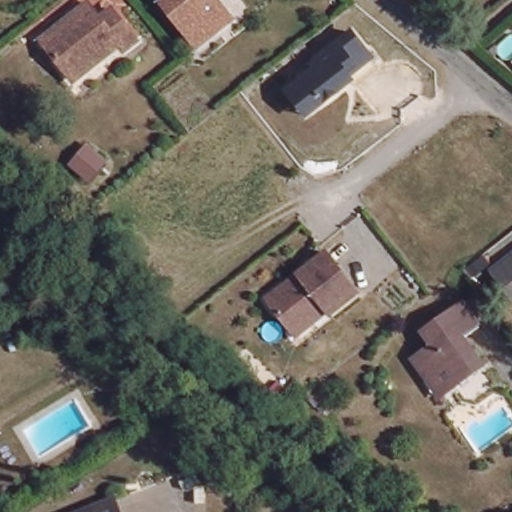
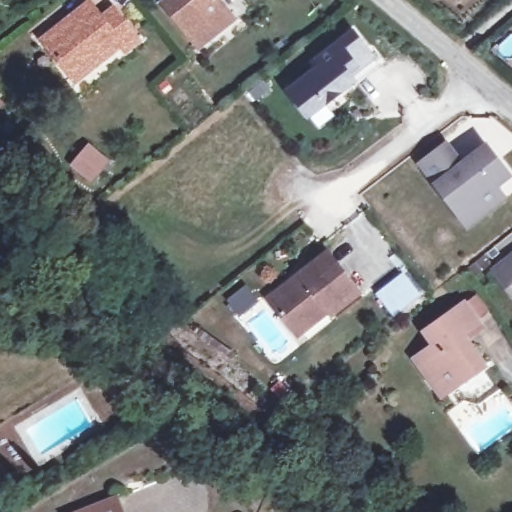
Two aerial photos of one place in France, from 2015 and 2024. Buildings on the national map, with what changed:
unchanged [(195,37),(167,2),(171,0),(221,0),(234,16),(216,30),(219,33),(202,46),(195,37)]
unchanged [(74,81),(42,40),(89,3),(102,18),(112,10),(132,35),(137,40),(124,51),(119,45),(91,68),(74,81)]
unchanged [(352,77),(355,82),(305,120),(283,88),(312,66),(309,61),(351,30),(375,60),(352,77)]
new [(447,139),(463,158),(486,140),(512,175),(512,176),(499,186),(507,198),(467,230),(431,183),(415,163),(447,139)]
unchanged [(87,145),(105,160),(90,178),(72,163),(87,145)]
unchanged [(497,265),(512,252),(512,285),(497,265)]
unchanged [(295,331),(270,301),(289,285),(292,289),(304,280),(300,276),(329,253),(360,293),(333,315),(330,312),(299,337),(295,331)]
new [(395,311),(380,291),(402,273),(419,292),(395,311)]
unchanged [(427,376),(414,356),(434,342),(424,328),(465,298),(482,322),(465,334),(482,356),(486,362),(470,373),(452,386),(440,395),(427,376)]
unchanged [(126,512),(110,512),(124,506),(126,512)]

